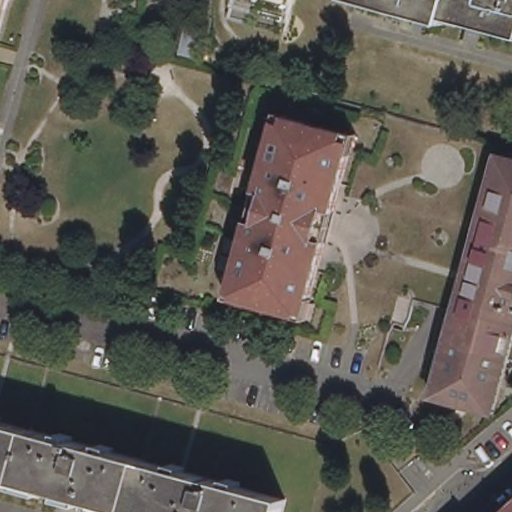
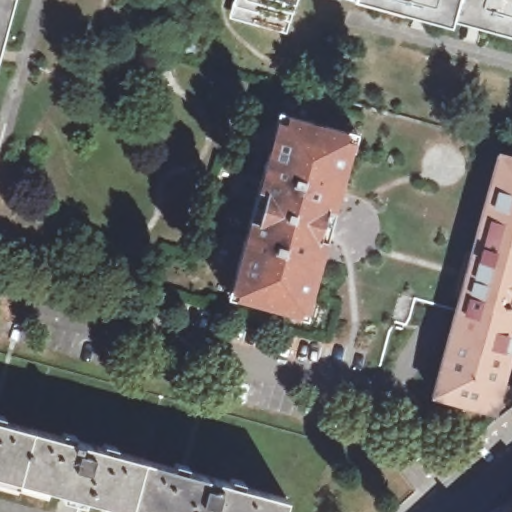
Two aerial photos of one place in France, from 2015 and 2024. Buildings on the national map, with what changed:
unchanged [(0,41),(0,0),(11,0),(0,41)]
unchanged [(292,29),(240,15),(243,0),(300,0),(292,29)]
unchanged [(512,31),(455,16),(452,23),(368,0),(512,0),(512,31)]
unchanged [(206,40),(201,59),(182,55),(186,35),(206,40)]
unchanged [(300,317),(299,316),(300,315),(265,305),(237,298),(237,300),(228,297),(234,276),(236,276),(276,134),(277,132),(275,132),(280,111),(291,114),(291,115),(315,121),(349,130),(358,133),(358,135),(356,134),(351,152),(353,153),(352,155),(351,154),(335,212),(328,240),(312,297),(314,298),(313,300),(308,319),(300,317)]
unchanged [(512,152),(512,360),(499,407),(439,390),(505,150),(512,152)]
unchanged [(281,512),(156,512),(0,469),(0,415),(286,493),(281,512)]
unchanged [(512,506),(512,512),(505,512),(511,506),(512,506)]

